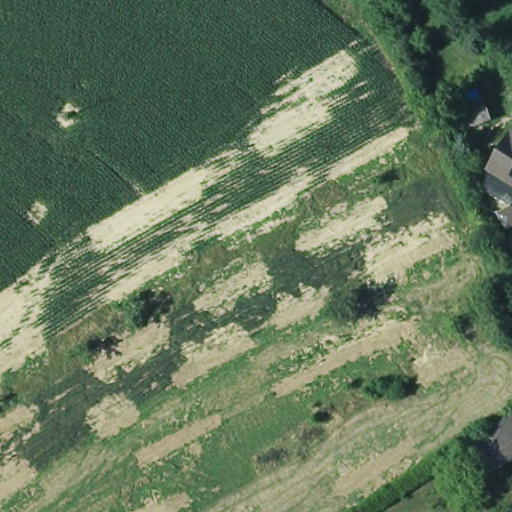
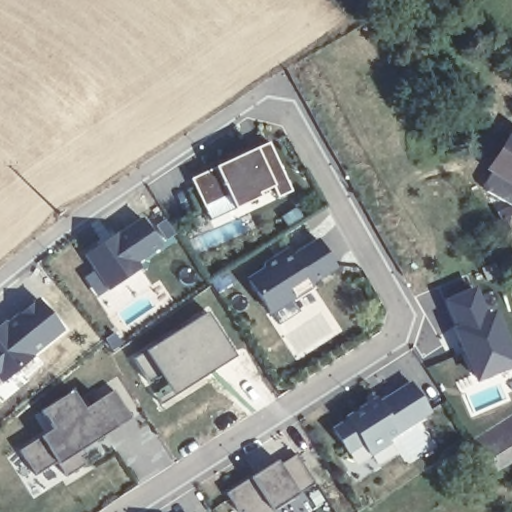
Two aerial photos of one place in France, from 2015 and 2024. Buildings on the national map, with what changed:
unchanged [(511,130),(512,131),(512,191),(485,174),(511,130)]
new [(277,199),(273,187),(260,194),(262,197),(235,210),(229,199),(204,208),(191,178),(216,167),(256,149),(270,141),(293,192),(277,199)]
new [(114,235),(116,238),(141,221),(158,246),(133,263),(138,270),(108,290),(85,256),(114,235)]
new [(313,285),(314,287),(272,315),(248,278),(264,267),(263,264),(290,246),(295,254),(318,239),(338,269),(313,285)]
new [(459,329),(446,300),(478,288),(489,316),(459,329)]
new [(33,356),(35,358),(3,385),(0,381),(0,325),(6,320),(8,322),(38,297),(65,330),(33,356)]
new [(236,356),(161,405),(131,361),(209,313),(236,356)]
new [(459,340),(463,339),(459,329),(489,316),(494,315),(512,359),(512,365),(476,380),(459,340)]
new [(433,415),(356,467),(334,430),(413,382),(433,415)]
new [(52,430),(40,412),(71,392),(83,410),(113,391),(131,420),(89,445),(88,443),(80,448),(85,456),(80,459),(85,465),(65,478),(56,463),(35,477),(18,452),(52,430)]
unchanged [(512,417),(512,465),(487,480),(463,444),(512,417)]
new [(316,484),(273,510),(274,512),(239,512),(228,495),(295,452),(316,484)]

